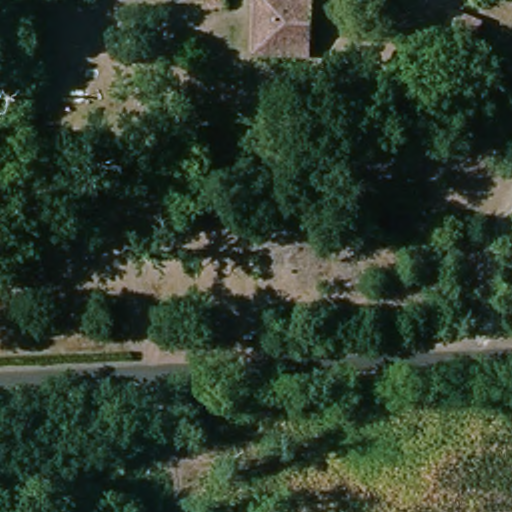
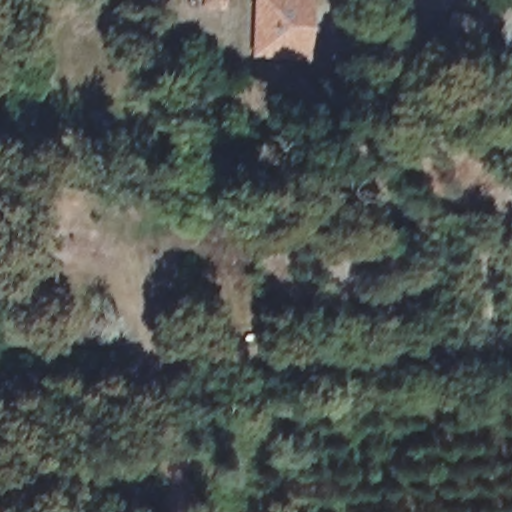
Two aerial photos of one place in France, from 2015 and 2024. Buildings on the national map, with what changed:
unchanged [(308,56),(254,52),(260,0),(312,0),(308,56)]
unchanged [(479,26),(473,44),(447,34),(454,17),(479,26)]

